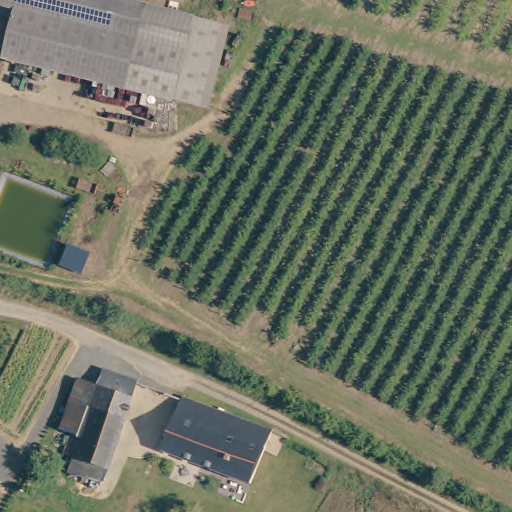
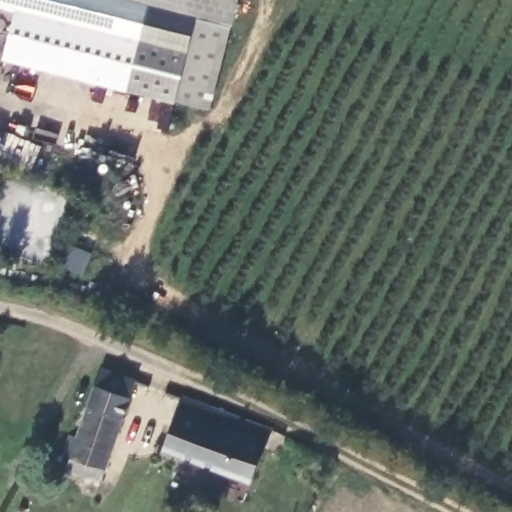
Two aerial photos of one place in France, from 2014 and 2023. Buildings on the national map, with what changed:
unchanged [(0,8),(0,0),(233,0),(206,108),(1,60),(13,12),(0,8)]
unchanged [(92,256),(85,277),(63,269),(71,249),(92,256)]
unchanged [(107,366),(143,379),(110,468),(99,505),(75,495),(84,469),(72,465),(77,452),(69,449),(77,428),(84,431),(102,381),(107,366)]
unchanged [(84,431),(77,428),(64,425),(81,375),(102,381),(84,431)]
unchanged [(267,448),(254,482),(166,452),(183,399),(272,433),(267,448)]

